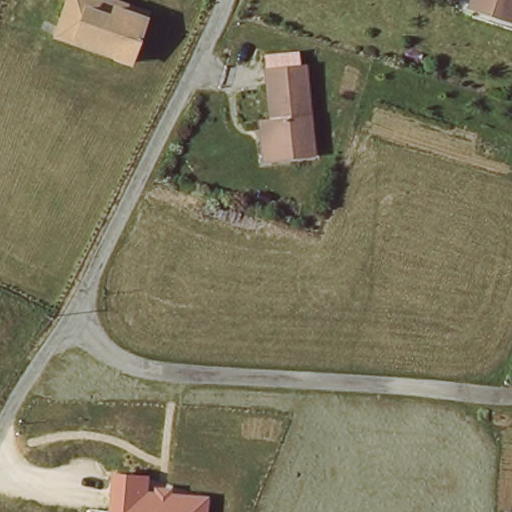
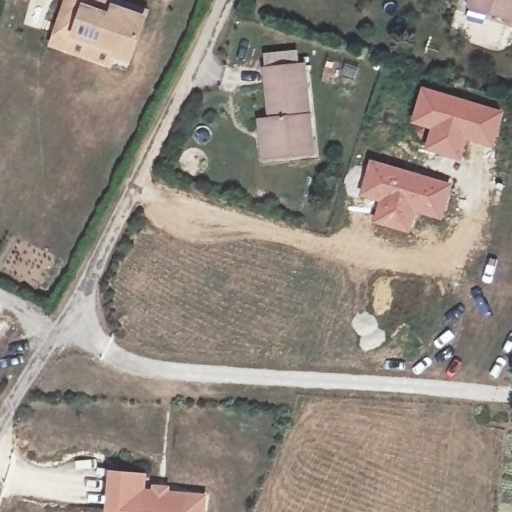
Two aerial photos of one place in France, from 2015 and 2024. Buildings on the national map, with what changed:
unchanged [(135,57),(58,35),(68,0),(127,0),(149,6),(135,57)]
unchanged [(470,0),(512,0),(512,14),(510,22),(469,6),(470,0)]
unchanged [(304,155),(285,157),(267,159),(265,136),(263,118),(274,117),(269,66),(308,62),(316,141),(317,153),(304,155)]
new [(421,85),(505,110),(495,150),(468,142),(462,162),(423,150),(430,129),(410,123),(421,85)]
new [(369,158),(453,183),(442,221),(417,214),(410,234),(370,223),(377,201),(359,197),(369,158)]
new [(0,311),(0,308),(2,308),(0,311)]
new [(110,472),(148,475),(147,490),(153,491),(153,486),(172,488),(171,493),(208,496),(206,512),(107,512),(110,472)]

